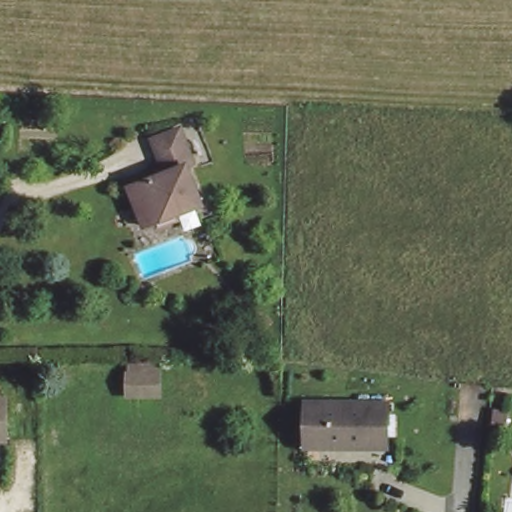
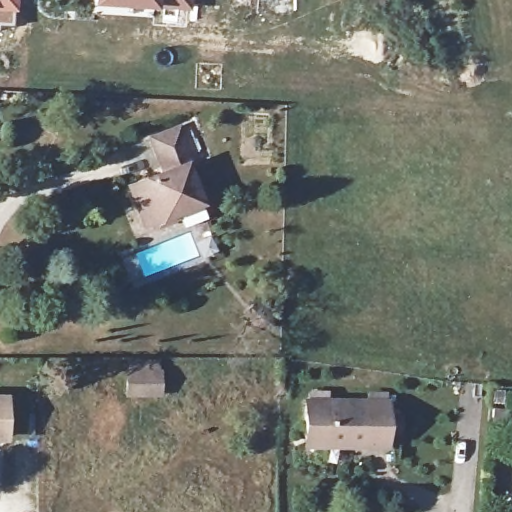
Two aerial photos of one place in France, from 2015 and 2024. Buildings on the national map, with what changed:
new [(12,11),(11,25),(0,24),(0,0),(17,0),(17,11),(12,11)]
new [(157,9),(91,4),(92,0),(191,0),(190,11),(157,9)]
unchanged [(147,208),(138,180),(168,167),(157,136),(181,126),(196,164),(189,166),(204,205),(160,222),(153,225),(147,208)]
unchanged [(158,391),(125,390),(126,364),(158,363),(158,391)]
unchanged [(0,396),(5,396),(3,438),(0,438),(0,396)]
unchanged [(308,439),(309,405),(388,406),(387,447),(343,448),(308,448),(308,439)]

